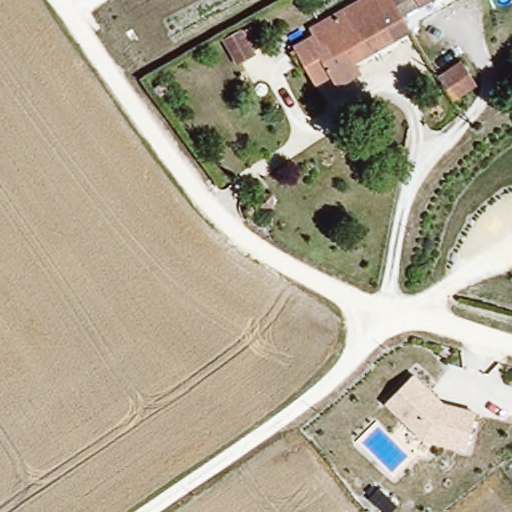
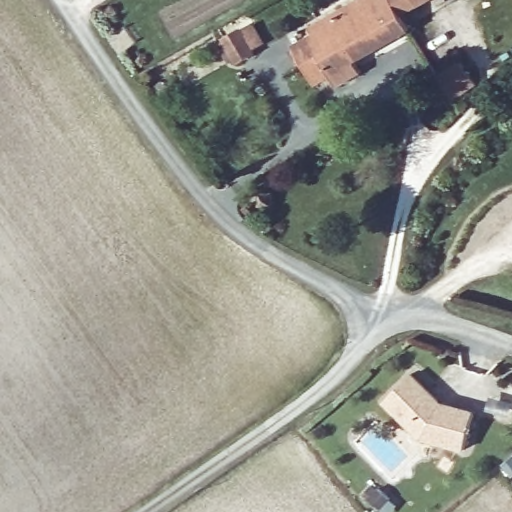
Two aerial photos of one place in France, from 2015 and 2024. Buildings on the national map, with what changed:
unchanged [(362,61),(368,73),(343,86),(337,76),(321,85),(298,44),(310,37),(307,31),(363,0),(403,0),(410,14),(420,30),(362,61)]
unchanged [(433,0),(410,14),(403,0),(433,0)]
unchanged [(260,51),(240,61),(228,39),(247,28),(260,51)]
unchanged [(479,79),(455,96),(440,75),(463,59),(479,79)]
unchanged [(418,439),(383,405),(415,375),(442,403),(476,412),(465,453),(418,439)]

